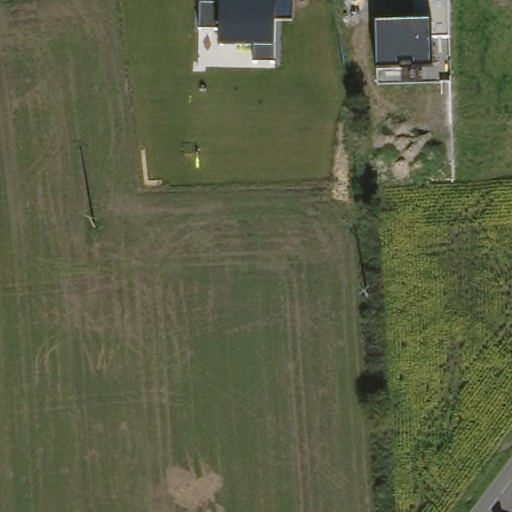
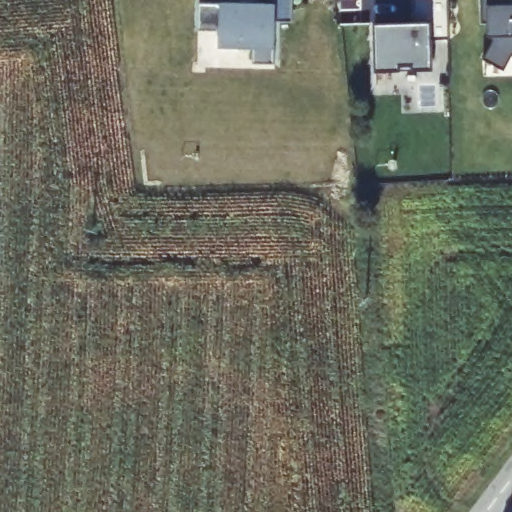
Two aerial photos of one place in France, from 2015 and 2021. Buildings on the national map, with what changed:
unchanged [(274,22),(275,64),(253,64),(253,46),(220,47),(220,29),(201,30),(200,5),(221,5),(221,1),(274,1),(274,0),(294,0),(294,22),(274,22)]
unchanged [(433,39),(434,71),(378,71),(376,22),(413,21),(413,0),(450,0),(450,39),(433,39)]
new [(512,59),(505,72),(483,60),(493,42),(492,22),(483,23),(482,0),(512,0),(512,11),(512,59)]

